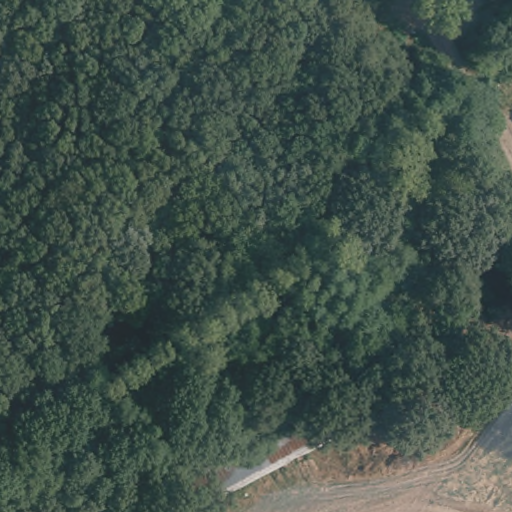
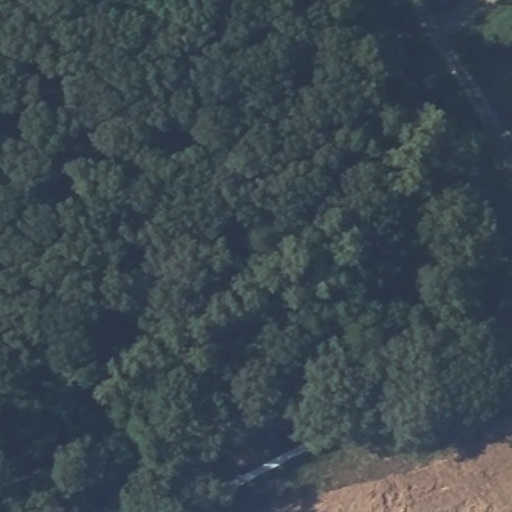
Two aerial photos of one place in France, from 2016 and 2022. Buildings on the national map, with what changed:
unchanged [(194,510),(178,474),(312,405),(335,439),(194,510)]

